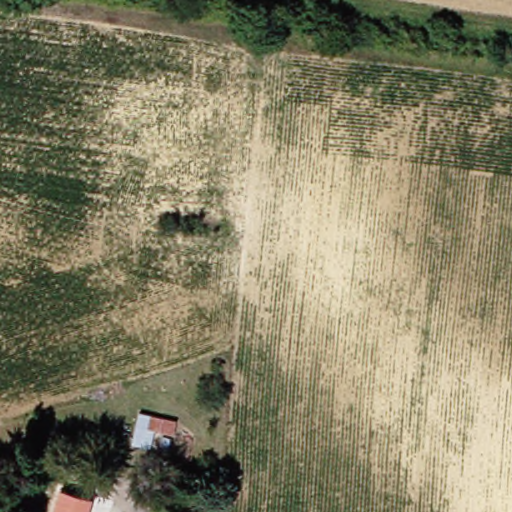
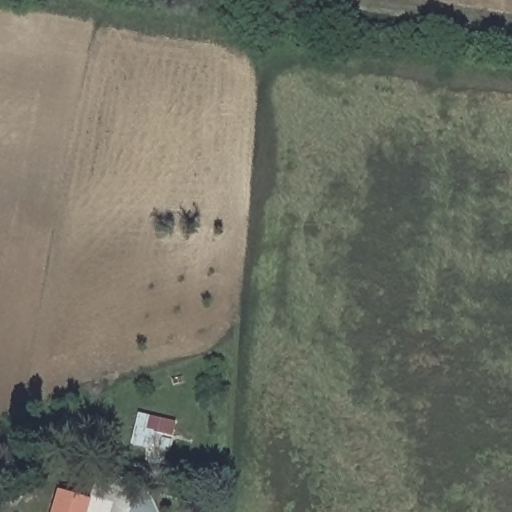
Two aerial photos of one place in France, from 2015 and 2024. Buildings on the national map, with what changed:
unchanged [(180,420),(178,440),(159,435),(156,448),(136,442),(142,413),(180,420)]
unchanged [(99,500),(96,512),(65,512),(70,491),(99,500)]

